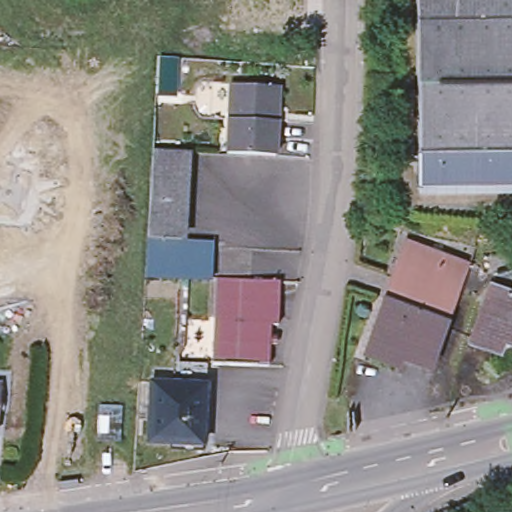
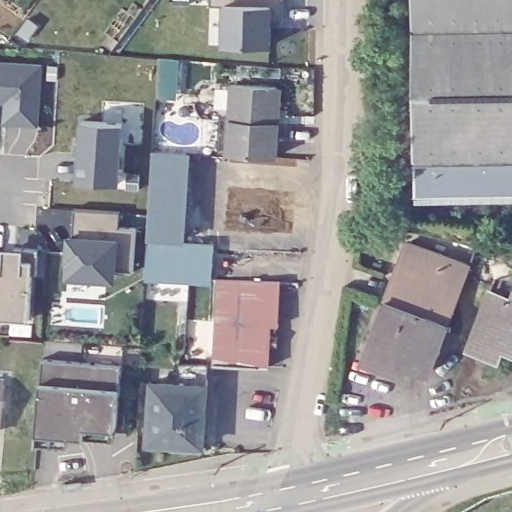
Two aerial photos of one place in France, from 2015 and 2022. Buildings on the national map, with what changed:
new [(211,0),(285,0),(285,22),(272,22),(272,47),(225,46),(226,7),(211,7),(211,0)]
unchanged [(420,0),(512,0),(512,11),(420,8),(420,0)]
unchanged [(420,8),(512,11),(512,142),(417,138),(420,8)]
new [(160,59),(179,60),(177,79),(176,99),(157,98),(159,78),(160,59)]
unchanged [(39,125),(5,123),(6,100),(0,100),(0,64),(42,67),(39,125)]
unchanged [(275,87),(279,92),(278,110),(277,122),(275,156),(228,154),(230,86),(275,87)]
new [(119,182),(80,180),(82,120),(122,122),(119,182)]
unchanged [(512,142),(512,178),(415,175),(417,138),(512,142)]
unchanged [(152,146),(187,148),(181,239),(147,238),(152,146)]
new [(69,234),(70,208),(119,211),(119,226),(135,227),(133,268),(119,267),(117,279),(67,278),(69,234)]
unchanged [(145,274),(147,238),(181,239),(212,241),(211,274),(211,277),(145,274)]
unchanged [(402,241),(462,263),(437,330),(378,309),(402,241)]
new [(15,249),(39,250),(38,274),(33,273),(30,319),(0,318),(1,311),(0,311),(0,252),(5,252),(15,252),(15,249)]
unchanged [(492,272),(512,266),(512,287),(508,294),(487,286),(492,272)]
unchanged [(216,275),(278,279),(275,324),(269,324),(266,361),(212,358),(216,275)]
unchanged [(508,294),(512,287),(512,344),(500,339),(495,350),(468,339),(487,286),(508,294)]
unchanged [(437,330),(425,363),(399,354),(395,365),(362,353),(378,309),(437,330)]
new [(38,431),(42,382),(44,358),(121,364),(120,386),(117,426),(115,438),(85,436),(70,434),(69,444),(37,443),(38,431)]
unchanged [(149,438),(152,378),(172,380),(173,358),(207,360),(205,382),(202,441),(149,438)]
demolished [(101,407),(122,408),(120,443),(99,441),(101,407)]

